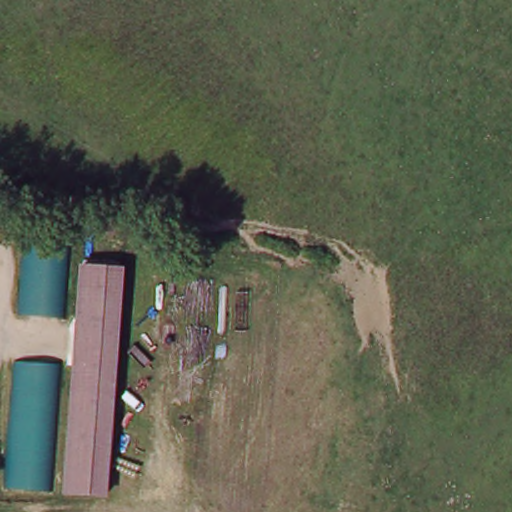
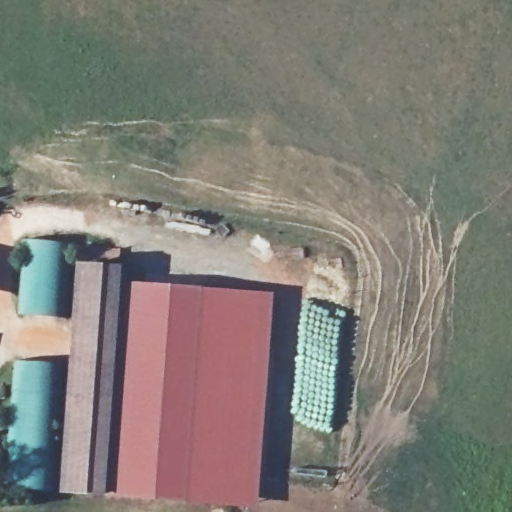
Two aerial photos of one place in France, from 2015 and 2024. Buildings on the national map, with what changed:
unchanged [(29,234),(70,237),(66,317),(25,315),(29,234)]
unchanged [(67,495),(79,271),(119,272),(107,497),(67,495)]
demolished [(200,276),(184,502),(142,499),(160,275),(200,276)]
new [(204,287),(187,502),(107,497),(118,283),(204,287)]
new [(272,292),(262,505),(187,502),(204,287),(272,292)]
unchanged [(60,366),(52,492),(9,488),(17,364),(60,366)]

